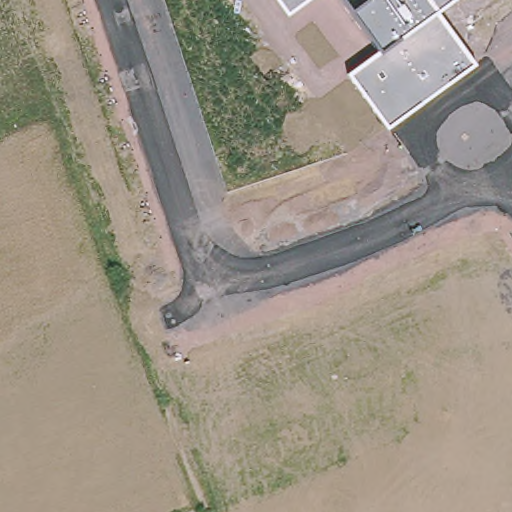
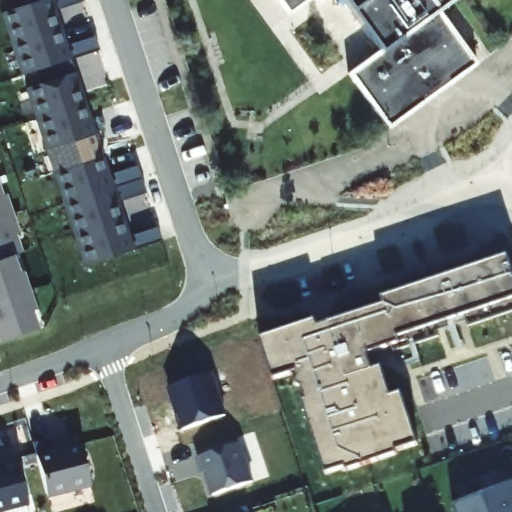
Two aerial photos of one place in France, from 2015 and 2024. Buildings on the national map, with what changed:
new [(50,0),(58,25),(15,39),(5,7),(28,0),(50,0)]
new [(28,0),(23,1),(23,0),(28,0)]
new [(74,0),(57,5),(55,0),(74,0)]
unchanged [(277,0),(312,0),(289,16),(277,0)]
unchanged [(477,65),(388,129),(348,74),(379,53),(340,0),(453,0),(438,10),(477,65)]
new [(58,25),(68,56),(25,70),(15,39),(58,25)]
new [(68,40),(93,32),(97,46),(73,55),(68,40)]
new [(40,115),(30,87),(50,80),(44,64),(68,56),(83,100),(40,115)]
new [(93,131),(50,145),(40,115),(83,100),(93,131)]
new [(68,139),(93,131),(97,145),(73,153),(68,139)]
new [(57,169),(100,154),(111,185),(67,199),(57,169)]
new [(110,170),(135,162),(140,175),(144,190),(120,197),(115,184),(110,170)]
new [(111,185),(120,215),(77,230),(67,199),(111,185)]
new [(17,247),(8,250),(34,325),(0,335),(0,190),(17,247)]
new [(120,215),(132,250),(88,264),(77,230),(120,215)]
new [(131,235),(156,226),(160,240),(136,249),(131,235)]
new [(324,318),(383,301),(380,295),(512,252),(512,310),(476,321),(473,310),(443,320),(446,330),(399,345),(397,342),(372,348),(377,367),(390,363),(399,391),(407,388),(422,440),(331,468),(301,369),(277,375),(265,333),(323,314),(324,318)]
new [(167,387),(211,373),(226,415),(180,430),(167,387)]
new [(47,433),(50,448),(78,441),(87,481),(46,491),(32,438),(47,433)]
new [(245,438),(258,477),(218,490),(211,467),(207,468),(202,452),(245,438)]
new [(16,453),(27,499),(0,505),(0,457),(16,453)]
new [(457,501),(512,480),(512,512),(462,512),(457,501)]

